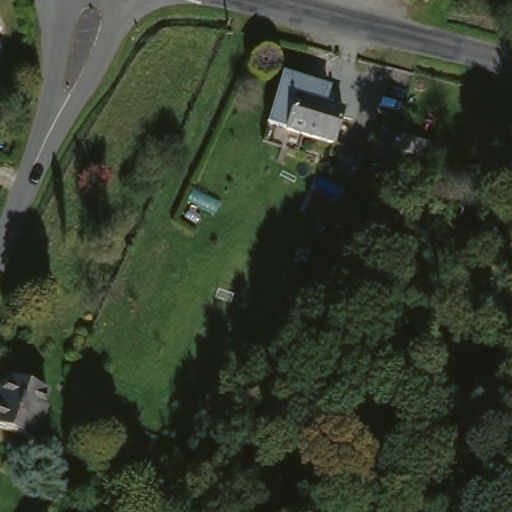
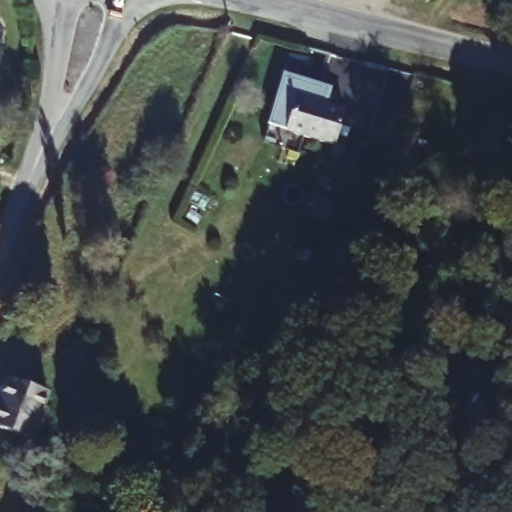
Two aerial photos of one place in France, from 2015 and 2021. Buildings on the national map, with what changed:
unchanged [(346,107),(335,141),(367,149),(365,157),(361,166),(341,156),(344,146),(334,144),(286,130),(298,94),(346,107)]
unchanged [(429,142),(422,158),(375,145),(381,125),(429,142)]
unchanged [(50,389),(42,406),(49,409),(36,436),(0,420),(0,395),(11,372),(50,389)]

